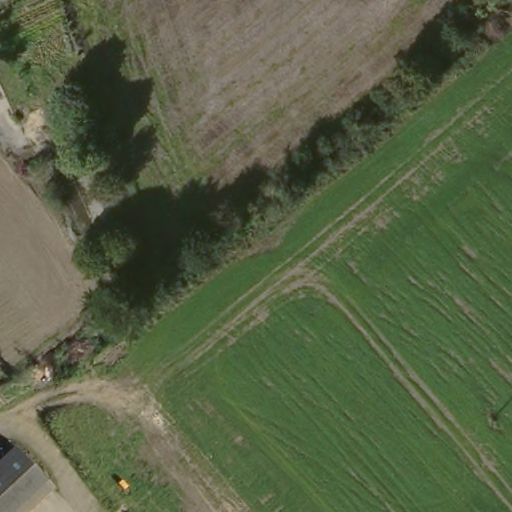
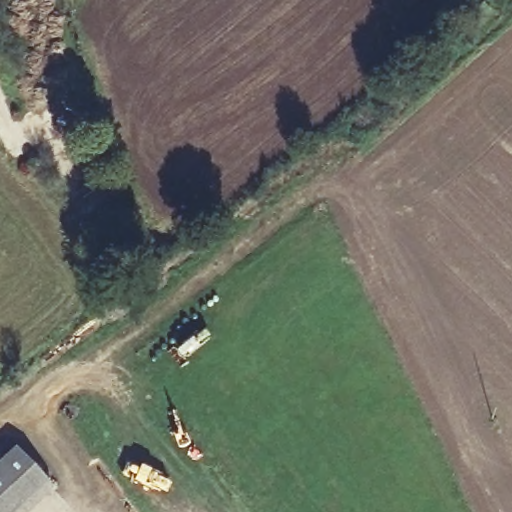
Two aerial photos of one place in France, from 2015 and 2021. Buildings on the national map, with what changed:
unchanged [(45,484),(17,512),(0,512),(0,461),(12,450),(45,484)]

